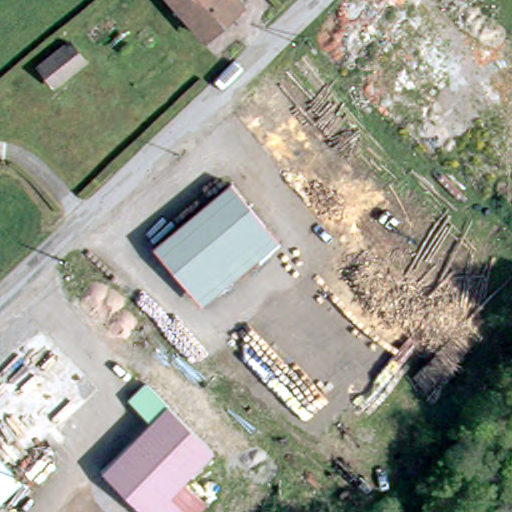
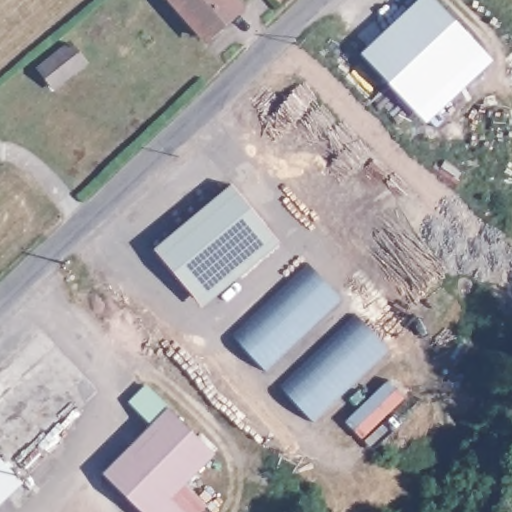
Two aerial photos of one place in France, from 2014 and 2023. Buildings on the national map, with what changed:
unchanged [(237,5),(200,37),(166,0),(233,0),(237,5)]
new [(482,52),(417,113),(360,55),(419,0),(434,0),(482,52)]
unchanged [(82,70),(51,94),(35,73),(65,50),(82,70)]
unchanged [(204,301),(159,244),(232,183),(283,243),(204,301)]
new [(343,299),(267,372),(234,340),(310,266),(343,299)]
new [(391,351),(315,423),(280,388),(355,315),(391,351)]
new [(388,382),(405,400),(362,441),(345,425),(388,382)]
unchanged [(217,455),(185,486),(209,507),(203,512),(141,512),(102,476),(152,425),(130,403),(147,385),(169,409),(217,455)]
unchanged [(0,504),(0,457),(23,482),(0,504)]

